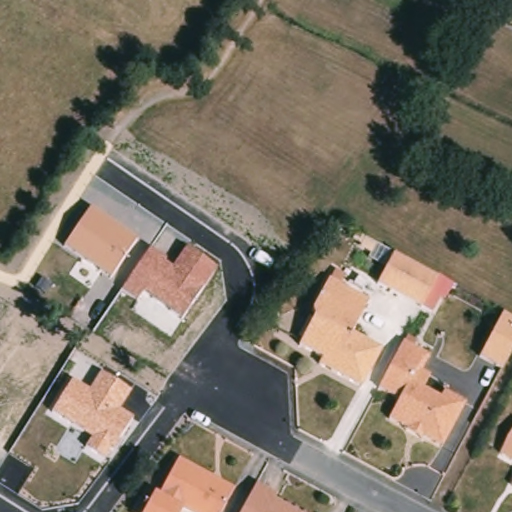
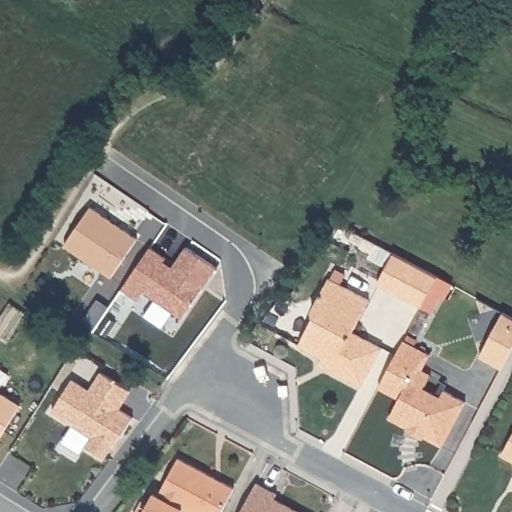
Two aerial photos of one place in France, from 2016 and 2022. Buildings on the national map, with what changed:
unchanged [(67,244),(91,210),(137,240),(112,276),(67,244)]
unchanged [(433,269),(416,300),(372,277),(389,246),(433,269)]
unchanged [(144,293),(137,300),(122,290),(151,248),(166,259),(164,262),(173,267),(185,248),(217,268),(182,319),(144,293)]
unchanged [(322,362),(298,348),(312,322),(311,311),(326,283),(368,305),(351,337),(381,353),(361,391),(330,375),(319,369),(322,362)]
unchanged [(497,371),(476,359),(500,315),(512,322),(512,344),(507,354),(498,371),(497,371)]
unchanged [(400,350),(426,364),(417,379),(431,386),(427,395),(437,401),(442,395),(464,407),(441,451),(426,443),(425,445),(409,437),(410,435),(387,422),(398,402),(377,392),(397,356),(400,350)]
unchanged [(52,411),(72,379),(90,390),(102,372),(131,391),(119,409),(134,418),(114,450),(111,449),(105,459),(86,448),(92,438),(52,411)]
new [(0,433),(0,392),(18,404),(0,433)]
unchanged [(497,458),(512,431),(512,466),(497,458)]
unchanged [(177,460),(233,490),(221,512),(186,512),(182,510),(181,512),(143,512),(153,493),(157,496),(177,460)]
unchanged [(509,491),(512,485),(512,492),(509,491)]
unchanged [(276,497),(273,502),(292,512),(240,512),(255,486),(276,497)]

